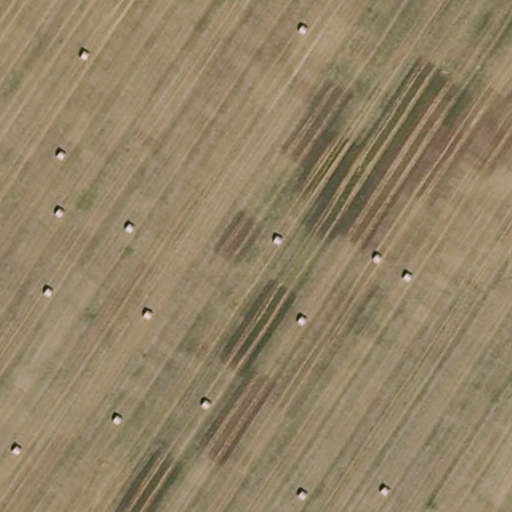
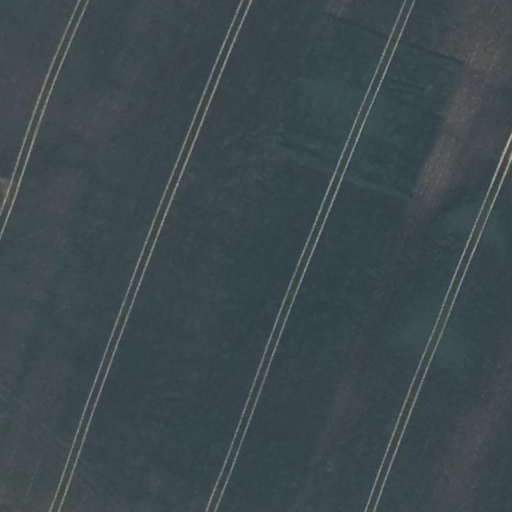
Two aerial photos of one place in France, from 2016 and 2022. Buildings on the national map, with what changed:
[]

